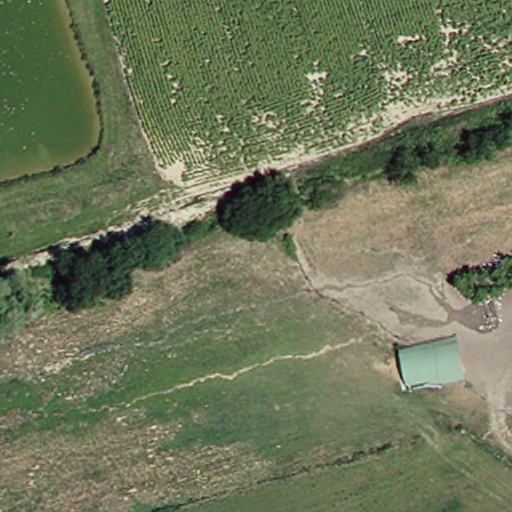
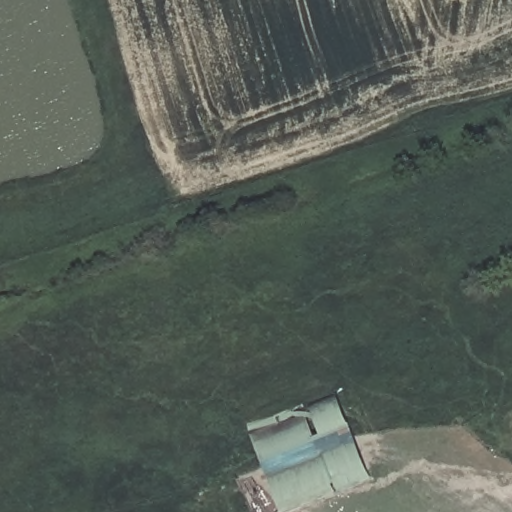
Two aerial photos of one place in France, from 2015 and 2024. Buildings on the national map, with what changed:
demolished [(455,335),(462,379),(403,391),(396,346),(455,335)]
new [(335,393),(366,474),(277,506),(247,425),(335,393)]

